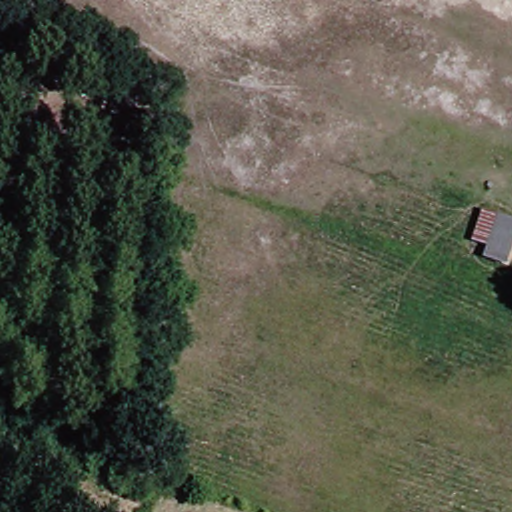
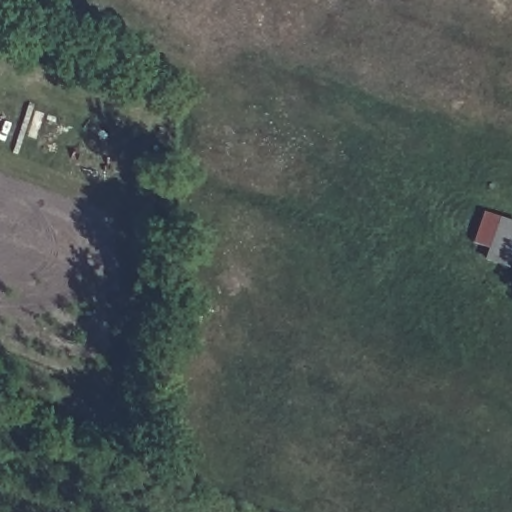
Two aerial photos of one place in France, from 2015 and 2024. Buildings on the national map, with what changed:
unchanged [(512,223),(512,243),(504,267),(477,259),(487,228),(479,224),(484,214),(512,223)]

